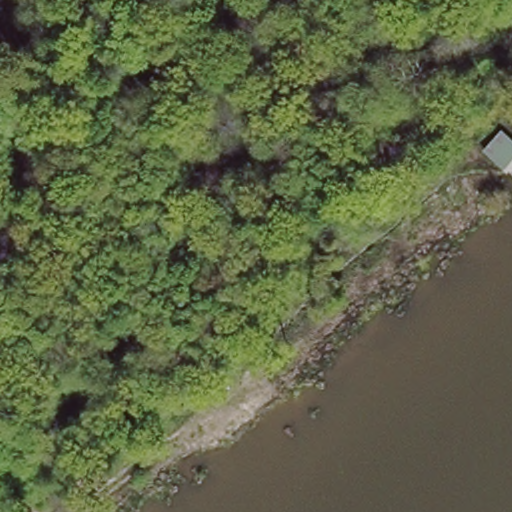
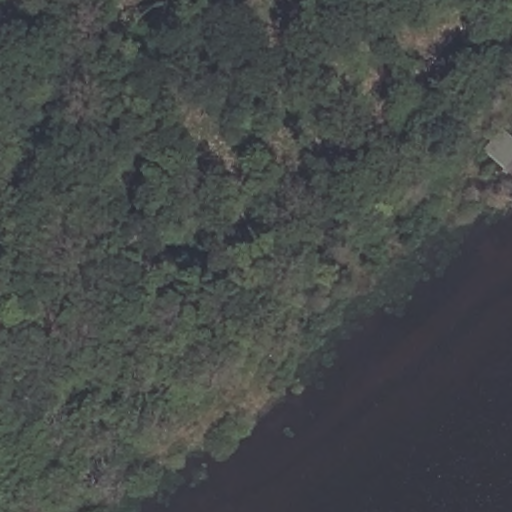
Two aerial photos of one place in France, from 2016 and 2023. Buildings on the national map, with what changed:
unchanged [(483,150),(502,130),(512,139),(512,162),(505,170),(483,150)]

